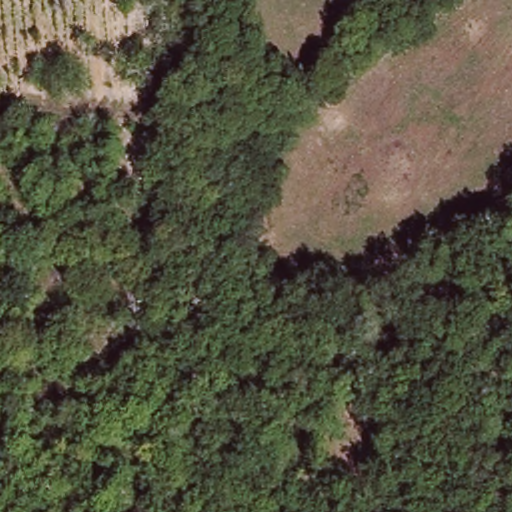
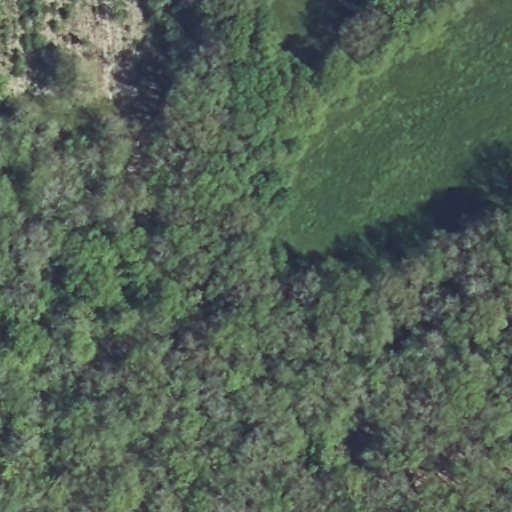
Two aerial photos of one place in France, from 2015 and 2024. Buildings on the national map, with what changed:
unchanged [(168,13),(178,8),(185,22),(175,28),(168,13)]

